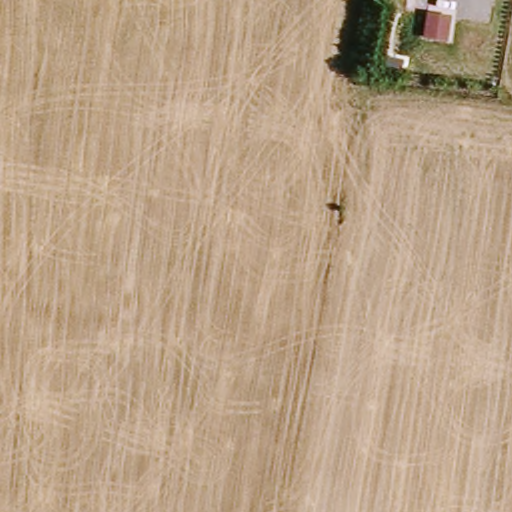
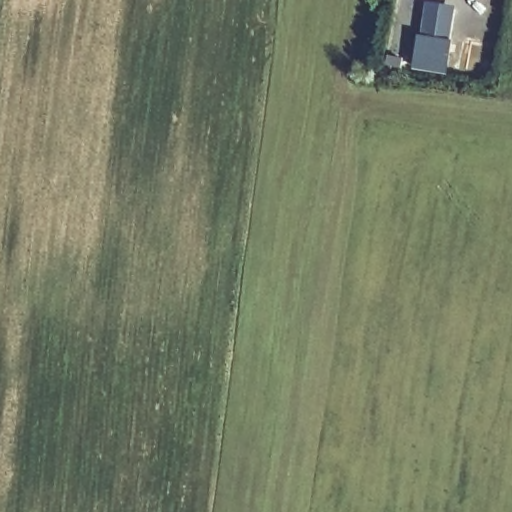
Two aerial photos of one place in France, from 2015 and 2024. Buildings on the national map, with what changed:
new [(429,2),(458,7),(452,40),(456,40),(449,74),(414,70),(420,35),(429,2)]

